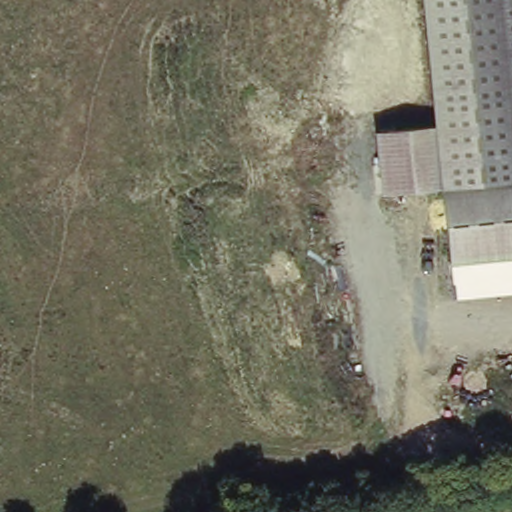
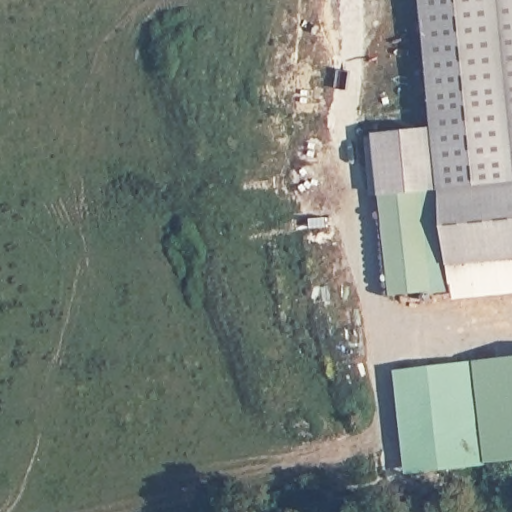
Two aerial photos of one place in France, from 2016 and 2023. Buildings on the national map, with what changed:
unchanged [(455,303),(454,288),(396,290),(381,197),(374,132),(435,125),(423,0),(512,0),(512,298),(455,303)]
new [(395,368),(512,356),(512,460),(407,472),(395,368)]

